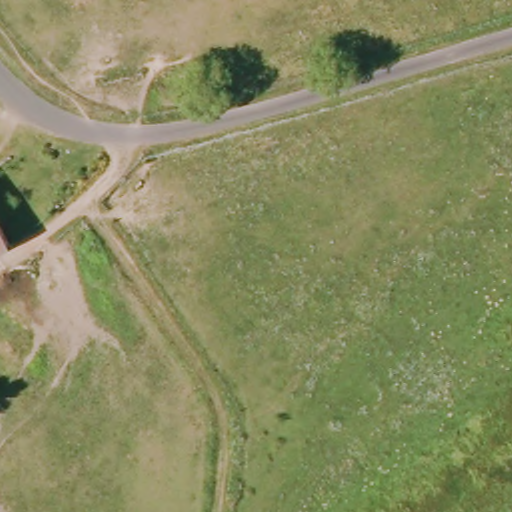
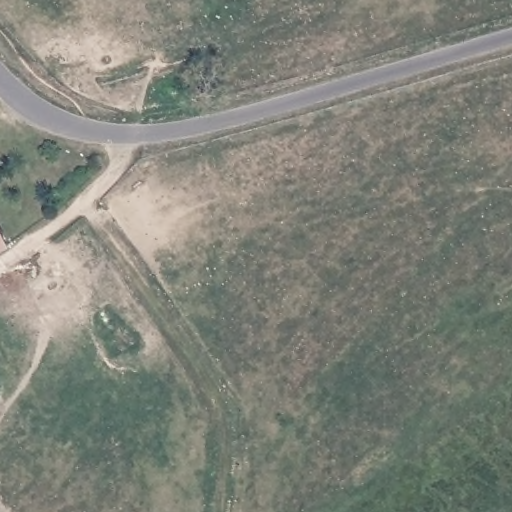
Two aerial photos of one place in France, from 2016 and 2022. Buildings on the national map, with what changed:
unchanged [(5,246),(0,249),(0,237),(5,246)]

